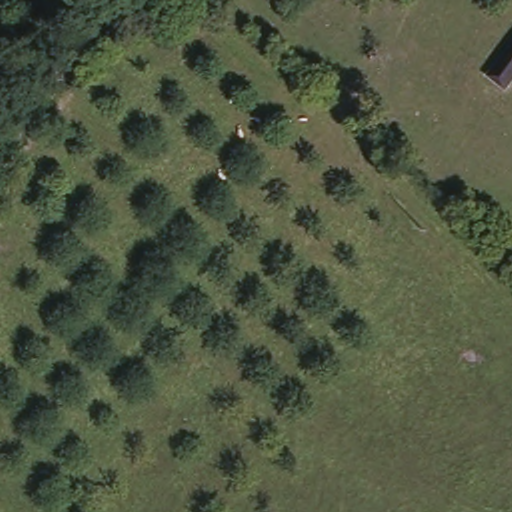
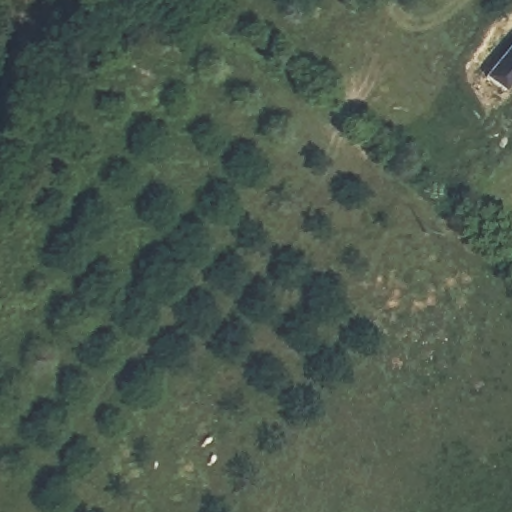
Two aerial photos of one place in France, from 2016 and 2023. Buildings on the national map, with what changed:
unchanged [(488,78),(512,45),(512,79),(503,91),(488,78)]

